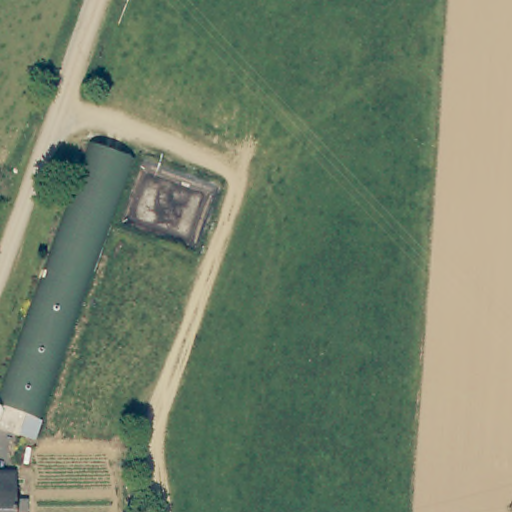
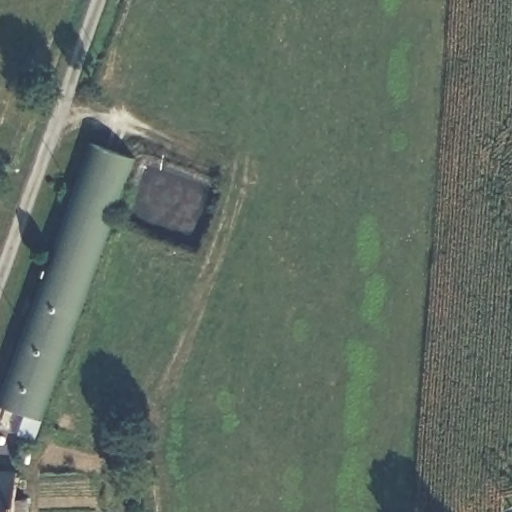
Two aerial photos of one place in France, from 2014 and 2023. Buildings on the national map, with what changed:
unchanged [(93,145),(138,161),(126,192),(82,176),(93,145)]
unchanged [(19,435),(26,415),(0,407),(0,395),(82,176),(126,192),(32,441),(19,435)]
unchanged [(0,512),(0,474),(14,474),(14,512),(0,512)]

